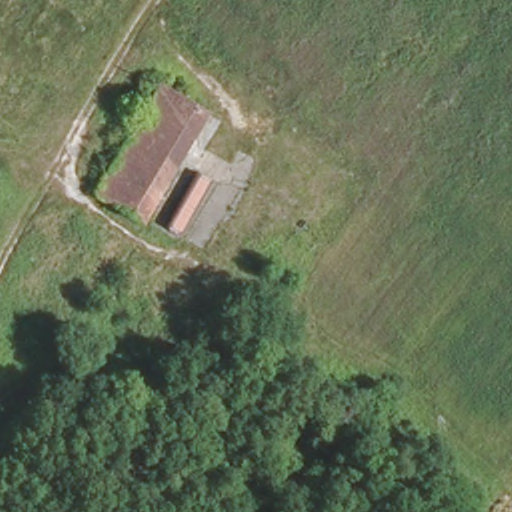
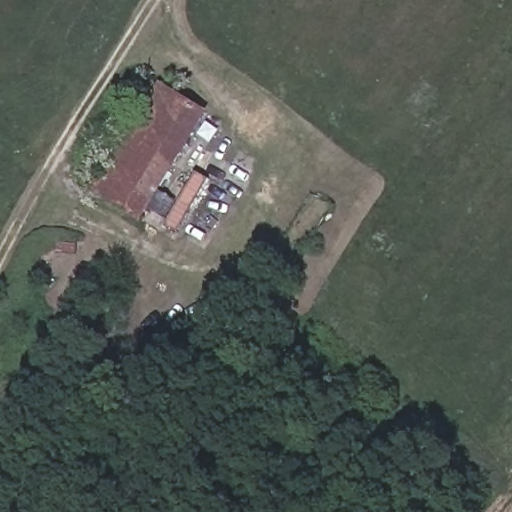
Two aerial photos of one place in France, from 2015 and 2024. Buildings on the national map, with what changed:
unchanged [(203,112),(140,220),(95,192),(160,86),(203,112)]

